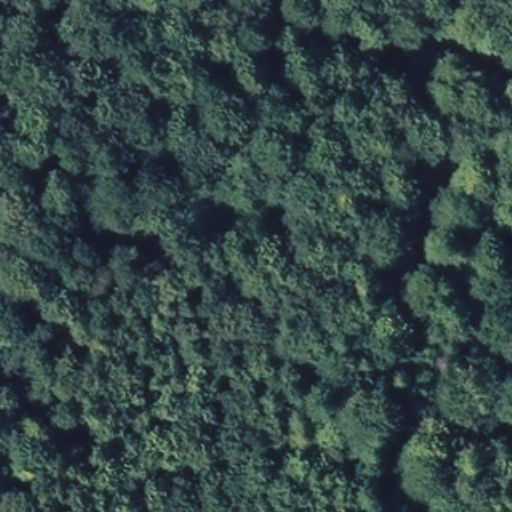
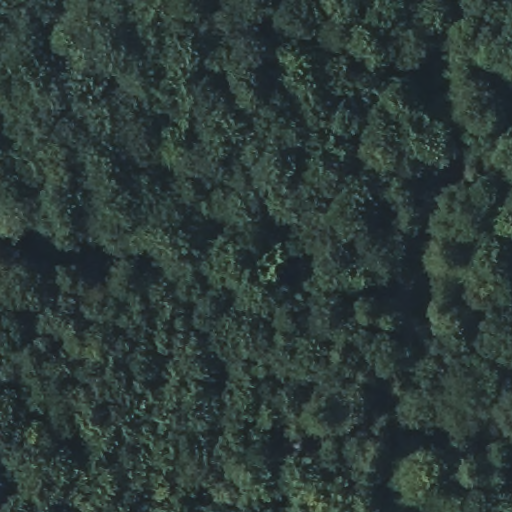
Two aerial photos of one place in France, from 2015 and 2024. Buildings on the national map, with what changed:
[]

